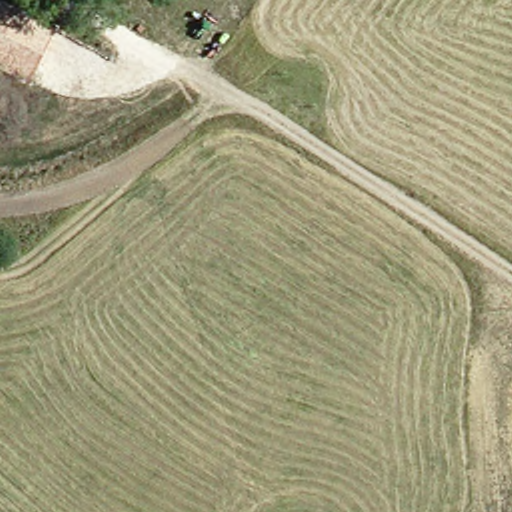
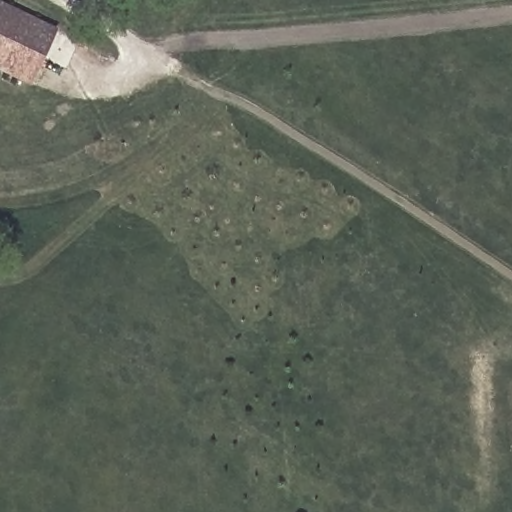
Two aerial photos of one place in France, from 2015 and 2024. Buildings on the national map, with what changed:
unchanged [(0,72),(0,6),(48,27),(23,82),(0,72)]

